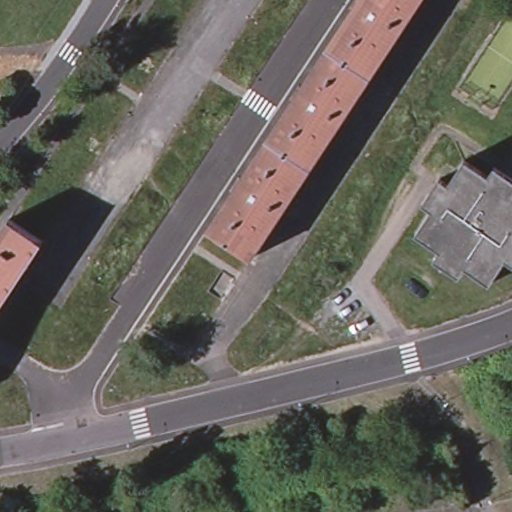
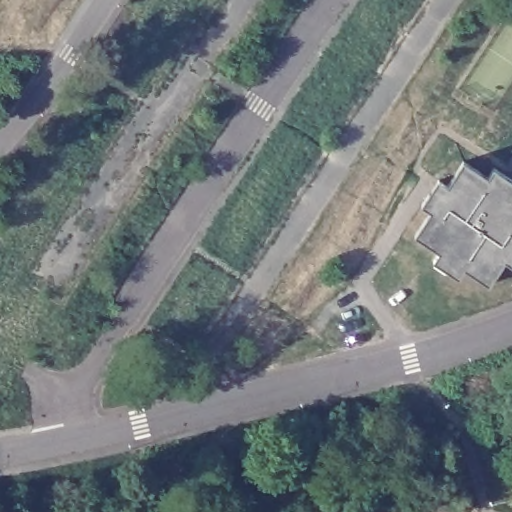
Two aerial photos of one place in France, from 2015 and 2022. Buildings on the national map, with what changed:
demolished [(331,138),(252,257),(207,230),(351,10),(358,0),(421,0),(331,138)]
unchanged [(450,185),(465,161),(489,177),(495,167),(512,179),(512,262),(507,259),(491,283),(466,268),(460,277),(436,261),(442,251),(418,236),(433,211),(424,205),(440,180),(450,185)]
demolished [(40,222),(0,282),(0,208),(5,200),(40,222)]

